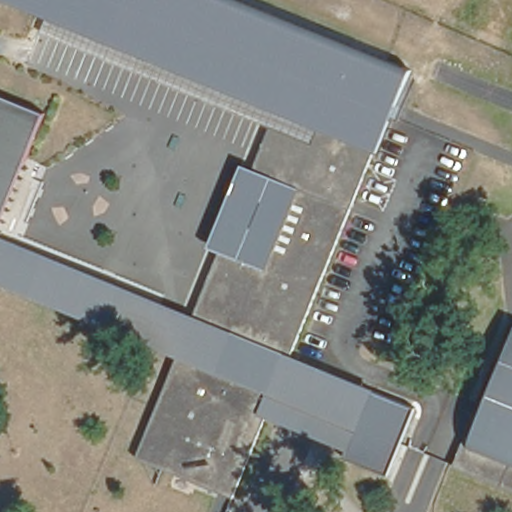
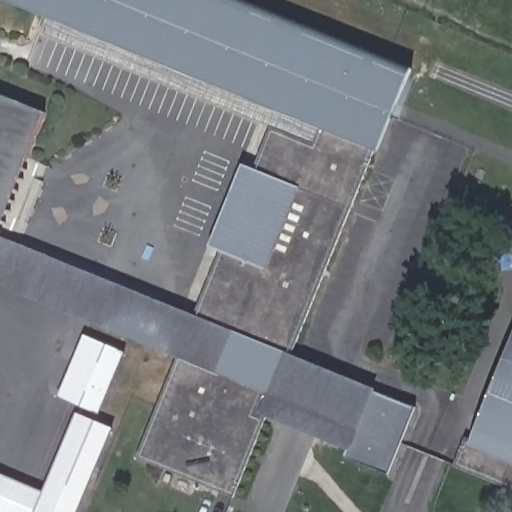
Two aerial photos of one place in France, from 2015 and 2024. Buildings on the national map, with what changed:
unchanged [(275,110),(0,2),(0,0),(236,0),(414,72),(293,354),(409,403),(381,474),(343,447),(263,417),(233,493),(135,456),(176,356),(0,291),(0,236),(193,311),(275,110)]
unchanged [(0,226),(0,97),(44,114),(0,226)]
unchanged [(452,467),(462,441),(471,444),(512,334),(512,490),(452,467)]
new [(116,353),(91,412),(54,396),(77,336),(116,353)]
new [(68,412),(105,427),(71,512),(0,512),(0,476),(34,491),(68,412)]

